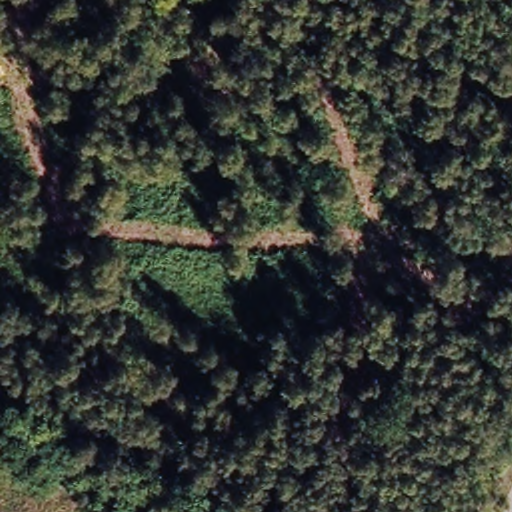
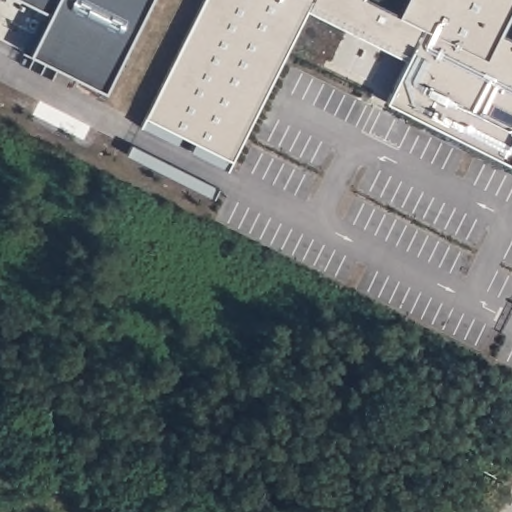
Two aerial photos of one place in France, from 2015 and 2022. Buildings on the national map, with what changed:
new [(106,91),(32,53),(52,13),(25,0),(151,0),(106,91)]
new [(387,101),(408,58),(308,9),(233,159),(146,116),(202,0),(368,0),(400,15),(408,0),(512,0),(512,12),(500,34),(512,40),(512,162),(387,101)]
new [(132,146),(221,189),(216,199),(128,156),(132,146)]
new [(510,440),(512,441),(512,461),(512,462),(502,457),(510,440)]

